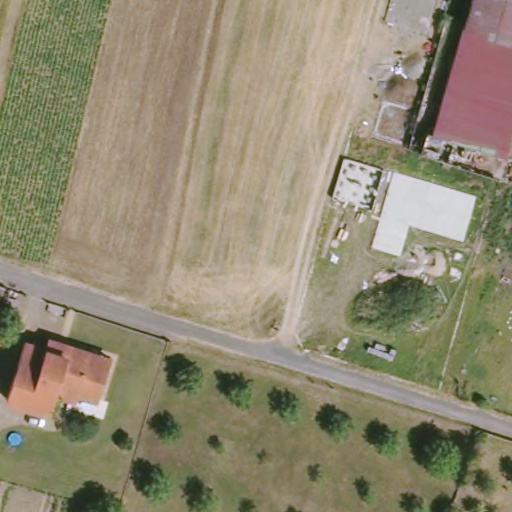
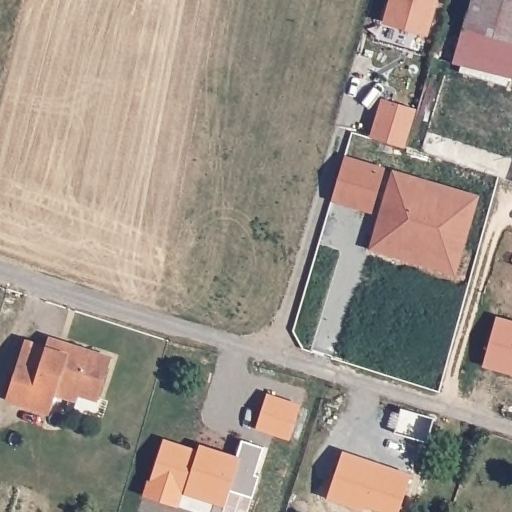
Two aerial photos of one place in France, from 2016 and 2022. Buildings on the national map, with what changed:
new [(434,0),(424,36),(383,24),(390,0),(434,0)]
unchanged [(512,0),(512,39),(467,27),(475,0),(512,0)]
unchanged [(505,154),(434,134),(466,28),(512,41),(512,130),(505,154)]
new [(381,102),(413,112),(402,149),(371,139),(381,102)]
new [(342,160),(382,171),(370,212),(330,200),(342,160)]
new [(392,175),(474,199),(461,242),(407,226),(398,257),(370,249),(392,175)]
new [(407,226),(461,242),(452,273),(398,257),(407,226)]
new [(496,320),(512,324),(512,375),(482,366),(496,320)]
unchanged [(55,390),(50,408),(11,398),(27,340),(51,346),(52,338),(70,342),(98,350),(115,355),(112,363),(102,403),(55,390)]
new [(268,392),(302,403),(291,435),(257,425),(268,392)]
new [(164,438),(199,449),(200,443),(237,455),(243,437),(265,444),(259,463),(254,462),(252,470),(260,473),(254,495),(231,487),(226,502),(182,487),(177,503),(146,493),(164,438)]
new [(342,450),(411,474),(398,512),(396,512),(366,502),(365,506),(327,495),(342,450)]

